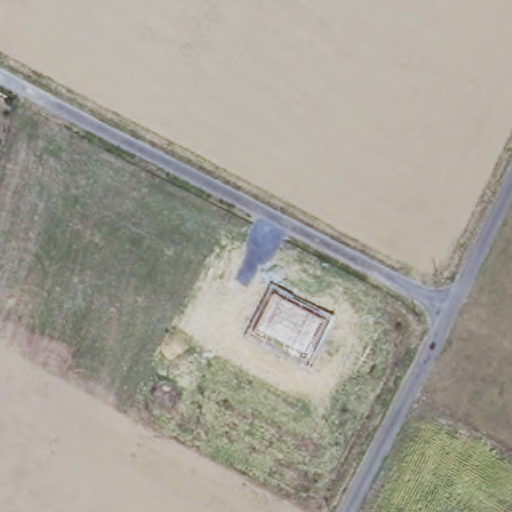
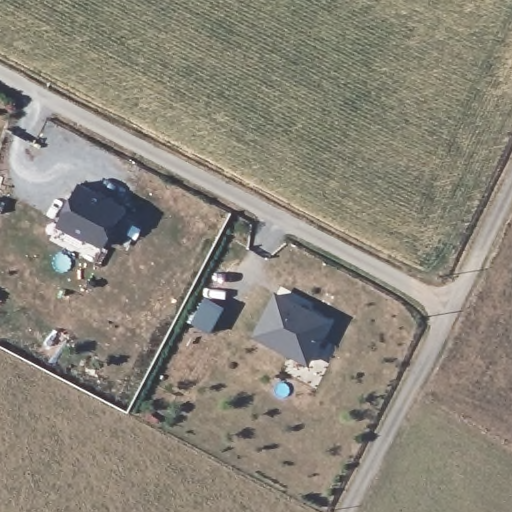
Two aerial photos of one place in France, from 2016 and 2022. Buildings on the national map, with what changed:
new [(57,226),(78,182),(124,205),(103,247),(57,226)]
new [(302,376),(284,366),(289,357),(252,337),(275,290),(332,320),(302,376)]

